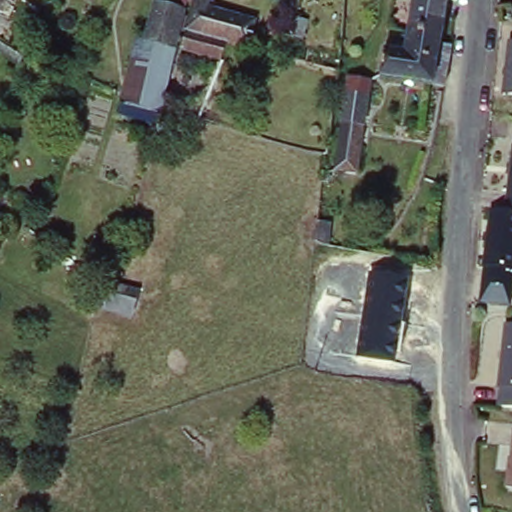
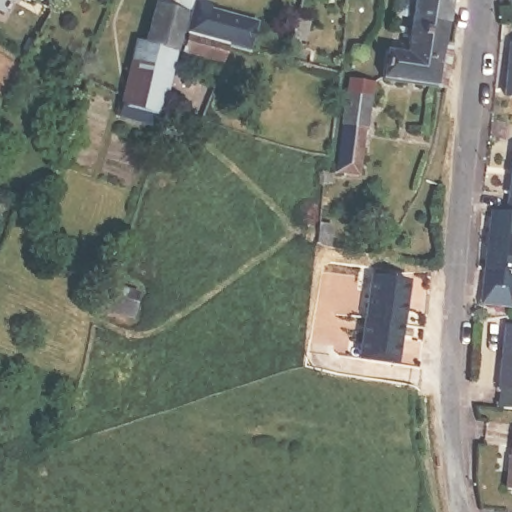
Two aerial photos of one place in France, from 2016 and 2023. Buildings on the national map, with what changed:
unchanged [(0,13),(0,0),(11,0),(3,15),(0,13)]
unchanged [(131,63),(135,42),(145,44),(157,0),(191,0),(210,5),(209,10),(256,24),(248,50),(230,45),(224,63),(177,50),(176,53),(170,74),(162,109),(153,129),(119,117),(123,97),(131,63)]
unchanged [(396,52),(399,27),(404,0),(437,0),(432,32),(431,43),(441,45),(434,85),(371,75),(375,48),(396,52)]
unchanged [(305,25),(301,42),(288,38),(293,22),(305,25)]
unchanged [(512,42),(512,94),(504,94),(510,42),(512,42)]
unchanged [(282,60),(286,46),(340,61),(338,76),(282,60)]
unchanged [(335,170),(338,147),(341,122),(345,91),(346,92),(348,77),(370,81),(367,95),(363,122),(359,151),(357,174),(335,170)]
unchanged [(82,99),(72,95),(78,78),(83,81),(88,83),(82,99)]
unchanged [(70,134),(53,127),(64,99),(79,106),(70,134)]
unchanged [(502,211),(508,150),(512,150),(512,211),(502,211)]
unchanged [(322,173),(329,171),(329,181),(321,181),(322,173)]
unchanged [(487,209),(502,211),(512,211),(512,272),(510,286),(508,306),(478,303),(479,284),(487,209)]
unchanged [(319,247),(313,242),(315,227),(330,229),(329,250),(319,247)]
unchanged [(394,365),(356,360),(370,272),(408,279),(394,365)]
unchanged [(126,321),(95,312),(104,287),(136,293),(126,321)]
unchanged [(512,331),(512,408),(505,407),(507,390),(502,390),(508,331),(512,331)]
unchanged [(505,487),(507,469),(512,469),(512,488),(505,487)]

